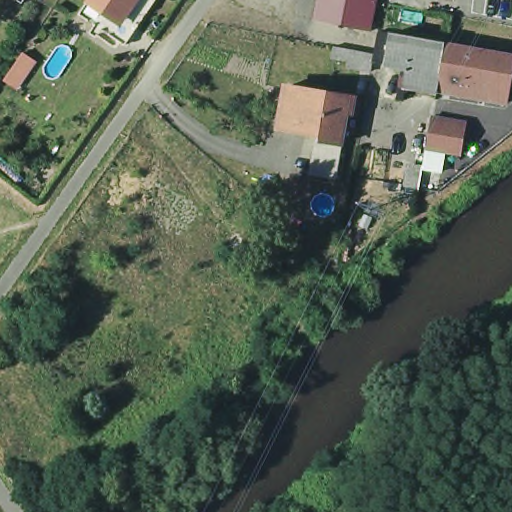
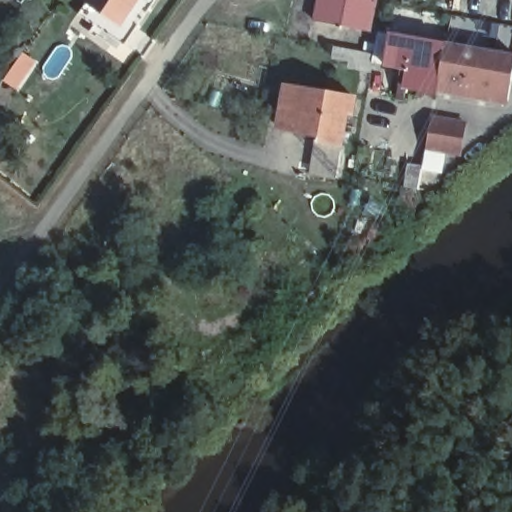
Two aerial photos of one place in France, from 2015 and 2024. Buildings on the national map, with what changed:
unchanged [(101,0),(139,0),(127,18),(101,0)]
unchanged [(316,19),(320,0),(355,0),(349,27),(316,19)]
unchanged [(371,31),(349,27),(355,0),(377,0),(371,31)]
unchanged [(442,92),(422,87),(424,71),(381,63),(379,75),(361,70),(361,65),(341,62),(343,50),(383,58),(386,39),(387,32),(438,42),(441,27),(454,29),(452,45),(487,51),(489,41),(506,44),(504,52),(512,53),(512,97),(509,101),(493,101),(458,94),(442,92)]
unchanged [(351,105),(348,105),(340,149),(319,146),(321,131),(301,126),(309,81),(330,84),(354,88),(351,105)]
unchanged [(466,122),(461,154),(432,149),(436,116),(466,122)]
unchanged [(416,187),(398,184),(403,166),(411,167),(418,178),(416,187)]

